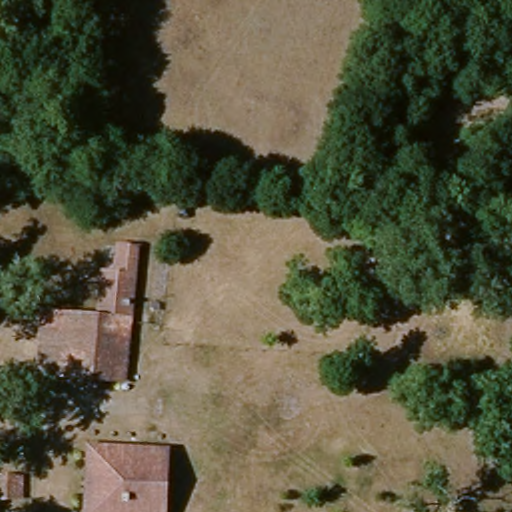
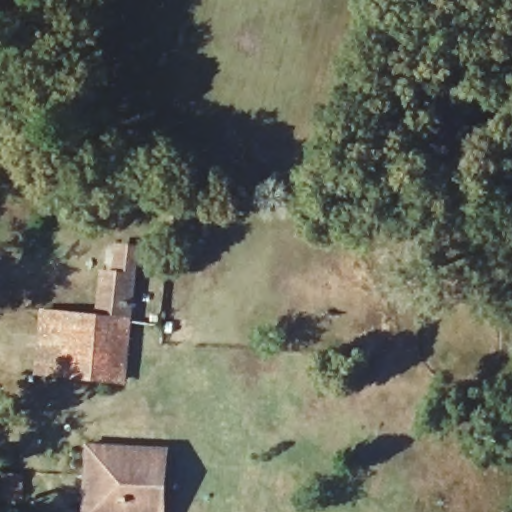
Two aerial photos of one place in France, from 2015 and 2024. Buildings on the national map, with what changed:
unchanged [(108,319),(111,275),(124,276),(125,249),(145,246),(133,383),(104,381),(108,319)]
unchanged [(96,380),(49,377),(53,316),(100,318),(108,319),(104,381),(96,380)]
unchanged [(95,509),(100,430),(179,435),(176,462),(175,493),(173,512),(123,512),(124,512),(95,509)]
unchanged [(0,487),(14,487),(14,507),(0,507),(0,487)]

